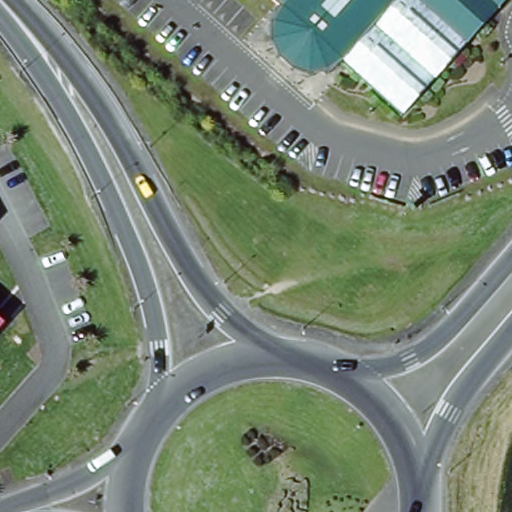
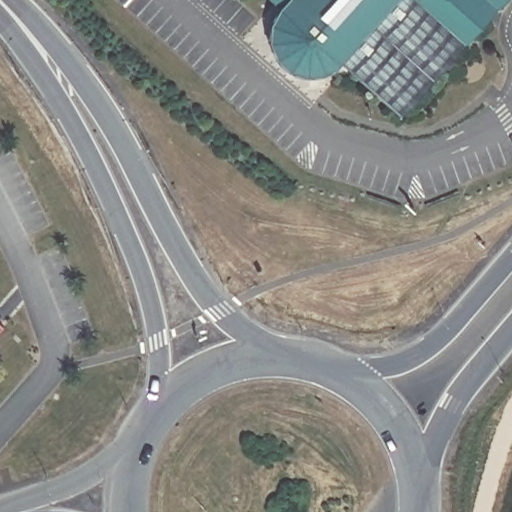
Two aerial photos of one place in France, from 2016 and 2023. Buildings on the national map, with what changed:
unchanged [(485,26),(415,113),(352,63),(344,70),(334,74),(324,76),(313,75),(303,72),(294,66),(287,59),(281,50),(278,39),(277,29),(280,18),(285,9),(274,0),(457,0),(485,26)]
unchanged [(457,0),(506,0),(485,26),(457,0)]
unchanged [(0,318),(7,324),(0,332),(0,318)]

